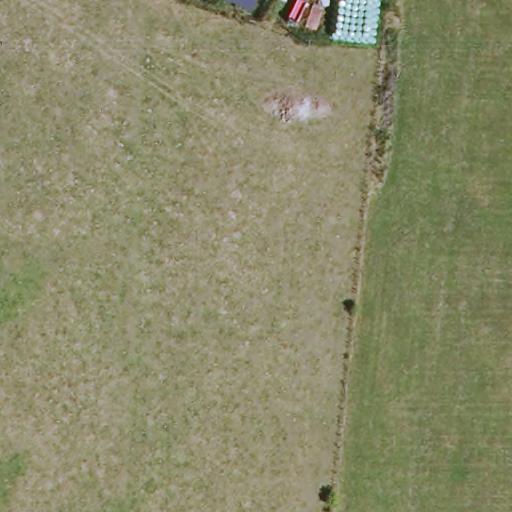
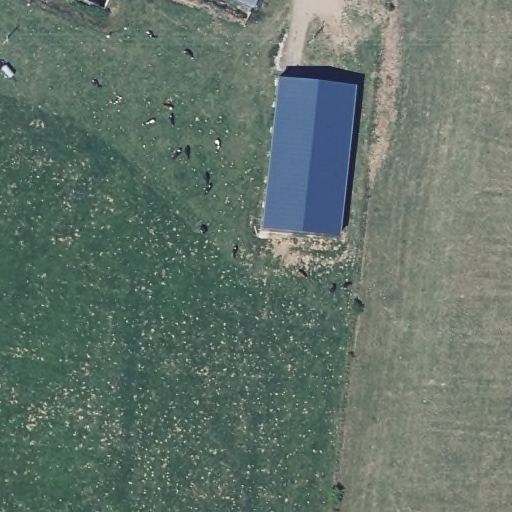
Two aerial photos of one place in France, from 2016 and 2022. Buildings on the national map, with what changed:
unchanged [(245,0),(250,0),(249,1),(245,0)]
new [(354,89),(339,238),(261,230),(275,79),(354,89)]

